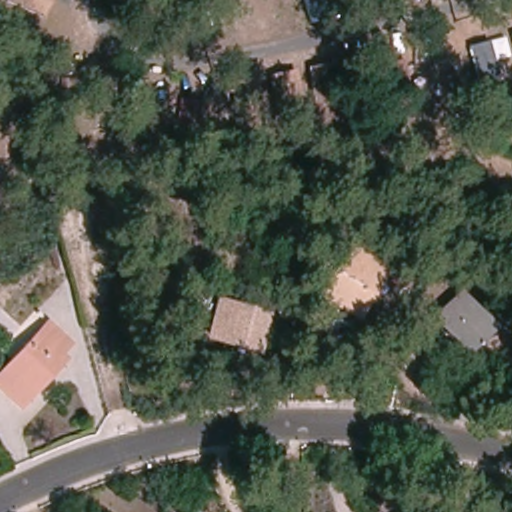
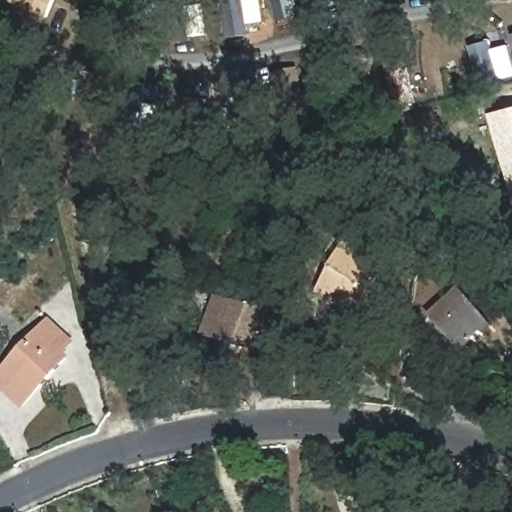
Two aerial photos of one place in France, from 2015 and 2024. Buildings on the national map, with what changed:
new [(512,107),(512,195),(490,112),(512,107)]
unchanged [(322,293),(349,249),(376,264),(387,270),(374,293),(360,315),(322,293)]
unchanged [(458,295),(490,328),(463,354),(432,321),(458,295)]
unchanged [(224,348),(227,339),(209,334),(218,300),(267,315),(258,348),(255,357),(224,348)]
unchanged [(50,325),(72,345),(61,356),(67,362),(26,406),(0,383),(0,379),(50,325)]

